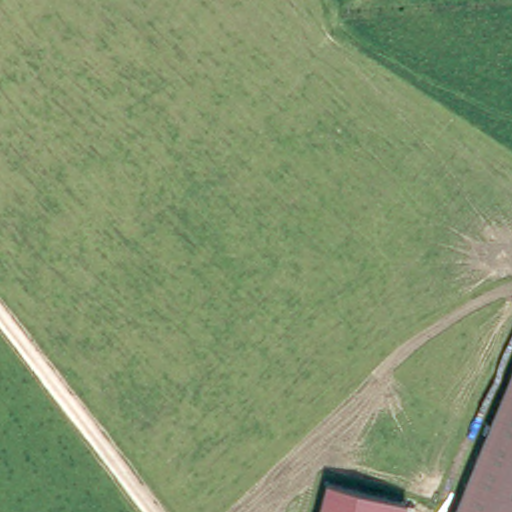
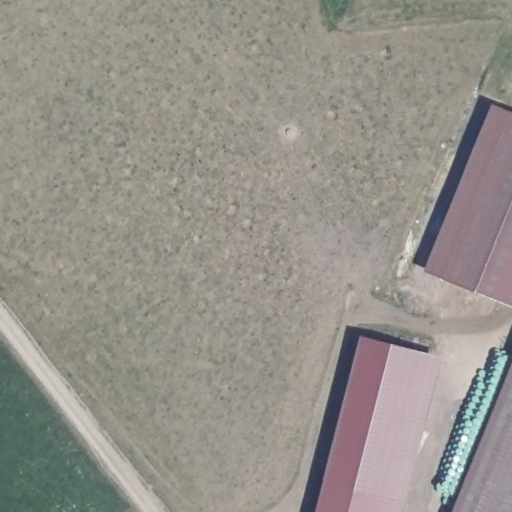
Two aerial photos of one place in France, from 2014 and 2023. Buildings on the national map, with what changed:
new [(426,272),(494,105),(512,112),(512,307),(426,272)]
new [(362,337),(443,357),(402,512),(364,512),(322,500),(362,337)]
unchanged [(458,512),(512,380),(512,512),(458,512)]
unchanged [(318,512),(322,500),(364,512),(318,512)]

